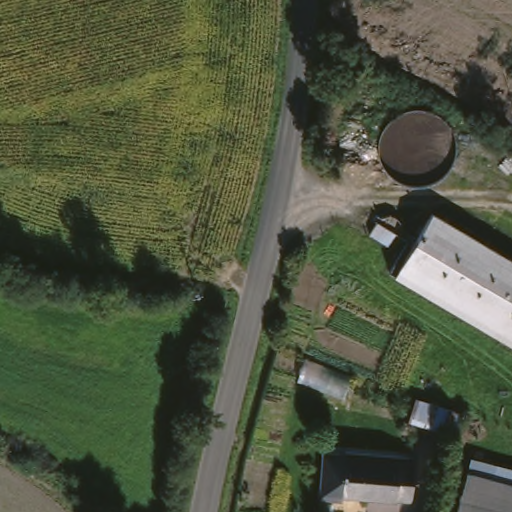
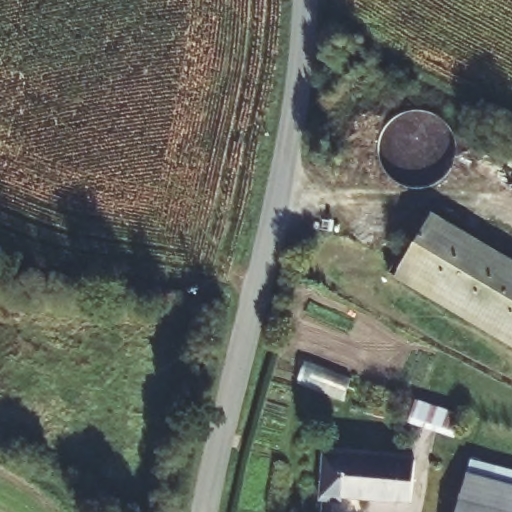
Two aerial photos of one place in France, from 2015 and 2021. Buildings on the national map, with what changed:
unchanged [(443,209),(512,252),(512,333),(406,267),(443,209)]
unchanged [(449,447),(409,428),(418,407),(458,426),(449,447)]
unchanged [(352,450),(393,454),(421,457),(418,498),(349,492),(351,457),(352,450)]
unchanged [(348,498),(324,497),(327,455),(351,457),(349,492),(348,498)]
unchanged [(512,512),(461,512),(477,457),(512,467),(512,512)]

